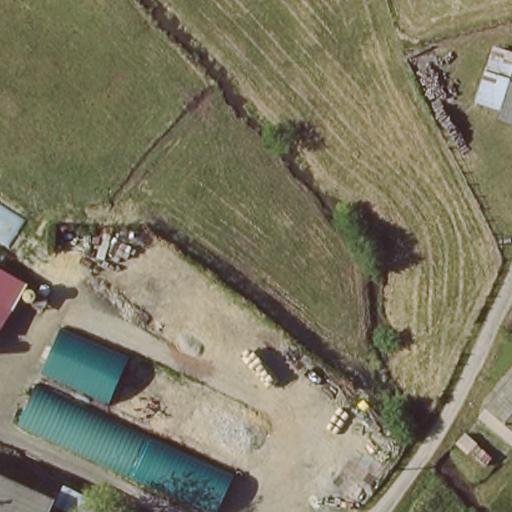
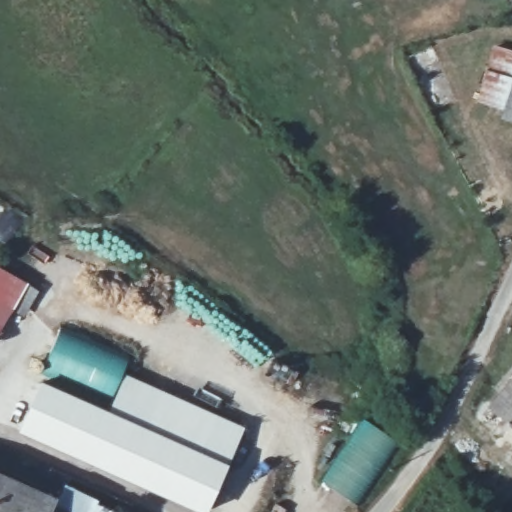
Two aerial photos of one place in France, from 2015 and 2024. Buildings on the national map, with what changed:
unchanged [(502,99),(512,69),(512,102),(502,99)]
unchanged [(38,291),(23,318),(10,312),(0,329),(0,268),(25,283),(38,291)]
new [(126,358),(110,399),(43,372),(59,330),(126,358)]
unchanged [(476,402),(512,369),(512,437),(476,402)]
new [(151,440),(41,383),(108,412),(125,375),(244,426),(226,463),(207,512),(203,512),(134,482),(151,440)]
unchanged [(134,482),(19,427),(41,383),(151,440),(134,482)]
new [(364,419),(398,442),(356,505),(322,481),(364,419)]
unchanged [(58,492),(51,512),(0,512),(0,472),(5,473),(58,492)]

